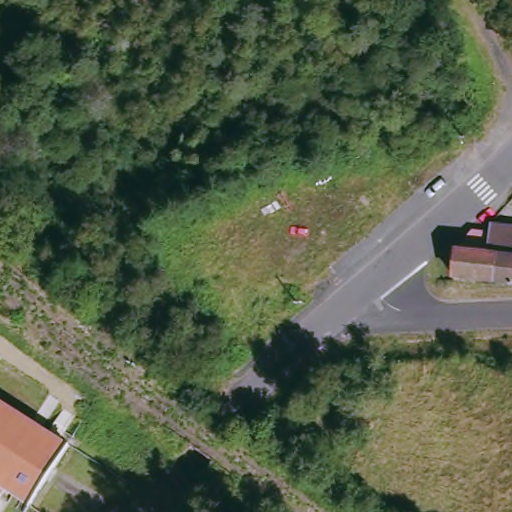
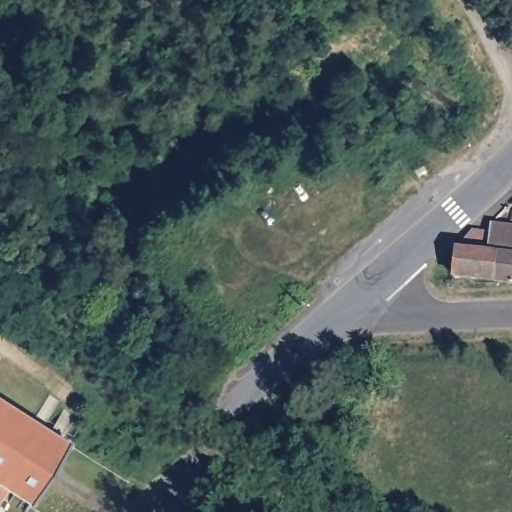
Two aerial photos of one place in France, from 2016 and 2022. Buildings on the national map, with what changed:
unchanged [(494,221),(510,213),(512,214),(512,289),(456,282),(457,259),(466,247),(495,233),(494,221)]
unchanged [(75,413),(54,398),(64,385),(85,399),(75,413)]
unchanged [(71,443),(33,502),(6,487),(0,496),(0,399),(71,443)]

